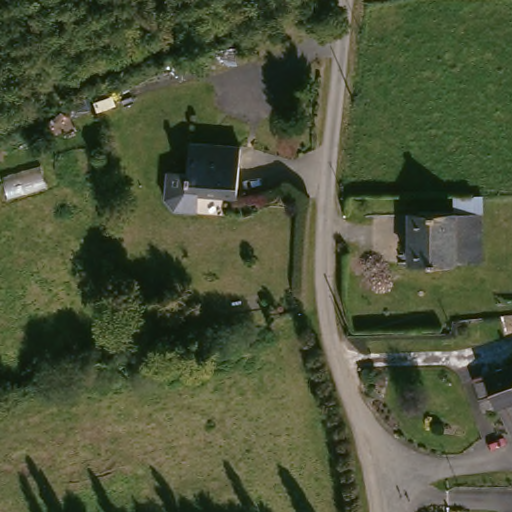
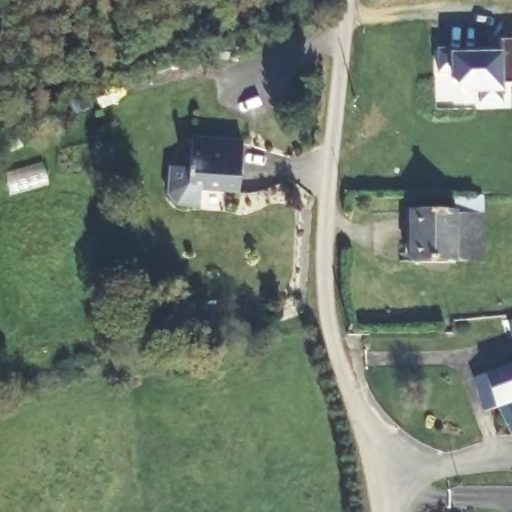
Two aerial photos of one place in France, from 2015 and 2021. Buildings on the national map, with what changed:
new [(461,90),(451,78),(451,70),(437,71),(437,49),(451,48),(452,55),(499,54),(500,38),(512,38),(512,83),(499,83),(499,89),(500,100),(481,102),(480,89),(461,90)]
unchanged [(246,139),(244,189),(206,188),(205,205),(182,205),(173,195),(173,167),(193,167),(193,164),(193,138),(246,139)]
unchanged [(462,257),(430,254),(420,253),(423,203),(425,203),(467,206),(462,257)]
unchanged [(494,209),(490,259),(462,257),(467,206),(494,209)]
unchanged [(492,368),(512,361),(512,415),(507,400),(502,401),(501,397),(489,402),(479,375),(492,370),(492,368)]

